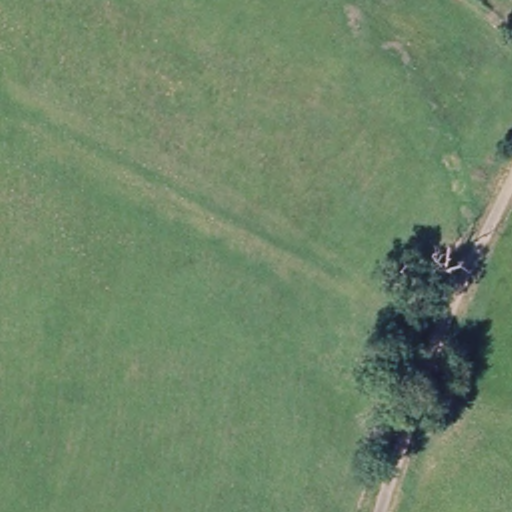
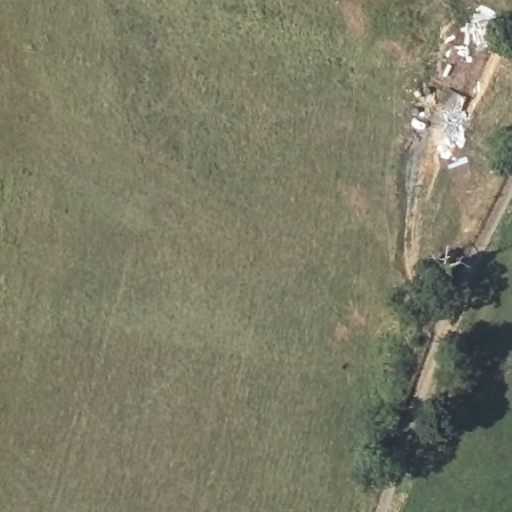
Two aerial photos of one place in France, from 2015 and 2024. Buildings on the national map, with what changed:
[]

